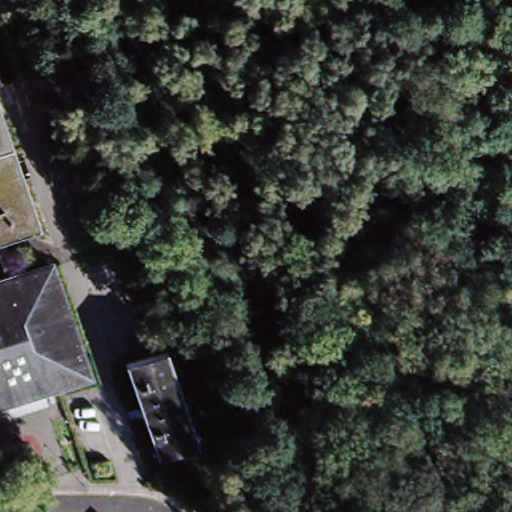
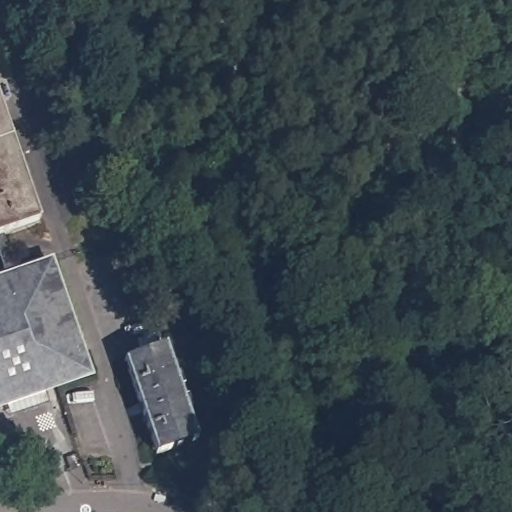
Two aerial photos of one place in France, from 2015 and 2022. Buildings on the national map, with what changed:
unchanged [(38,225),(4,236),(0,238),(0,116),(38,225)]
unchanged [(4,236),(17,274),(49,263),(88,372),(0,403),(0,280),(3,279),(0,271),(0,238),(4,236)]
unchanged [(197,441),(155,456),(123,364),(164,350),(197,441)]

